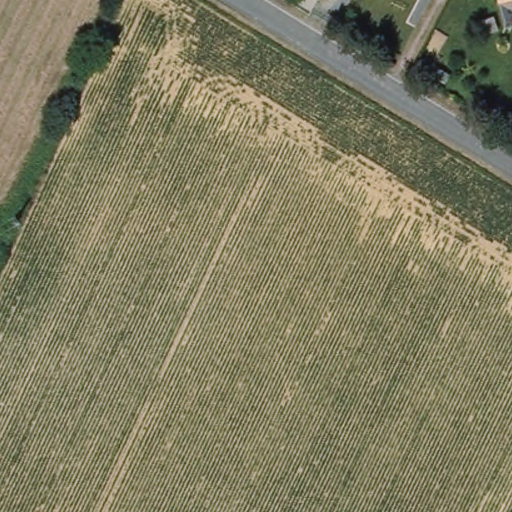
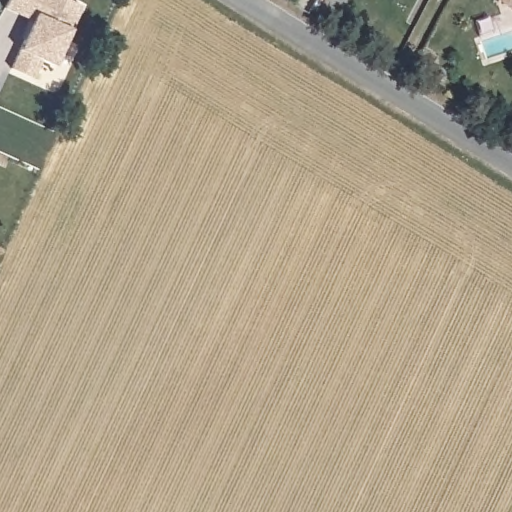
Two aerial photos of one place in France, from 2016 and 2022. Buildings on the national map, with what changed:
new [(19,51),(33,20),(5,10),(10,0),(67,0),(80,6),(69,28),(54,65),(41,60),(32,79),(11,69),(19,51)]

